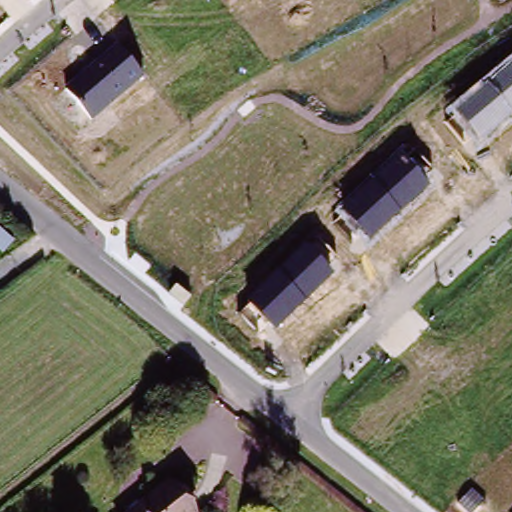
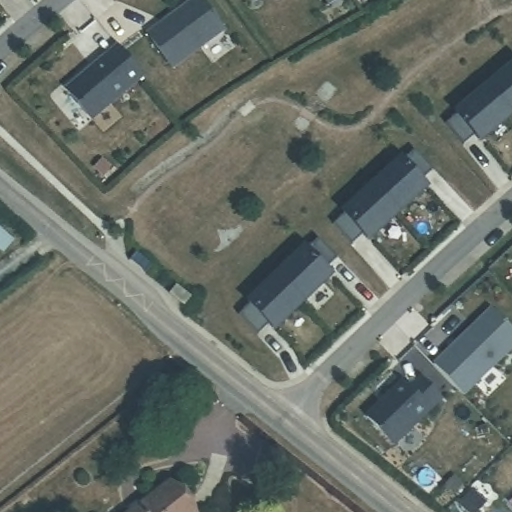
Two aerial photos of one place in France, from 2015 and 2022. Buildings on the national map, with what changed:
new [(201,0),(224,30),(172,68),(147,34),(192,0),(201,0)]
unchanged [(116,47),(143,76),(91,120),(67,89),(116,47)]
unchanged [(512,59),(512,116),(478,144),(451,109),(512,59)]
unchanged [(399,154),(431,186),(370,241),(341,206),(399,154)]
unchanged [(306,247),(333,274),(275,330),(251,299),(306,247)]
new [(512,331),(512,347),(464,394),(434,364),(490,309),(512,331)]
new [(405,385),(412,392),(423,381),(443,402),(397,448),(368,419),(405,385)]
unchanged [(161,486),(180,512),(128,512),(161,486)]

